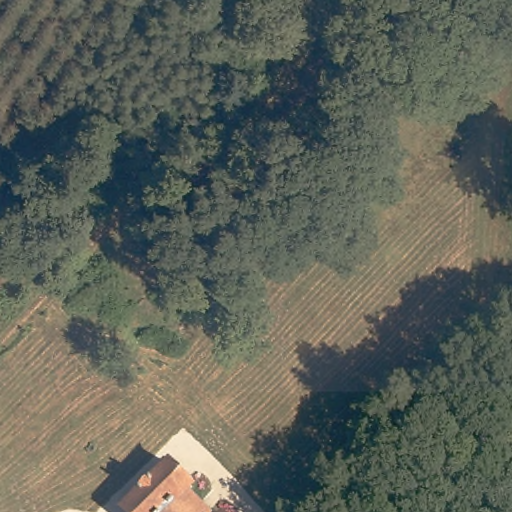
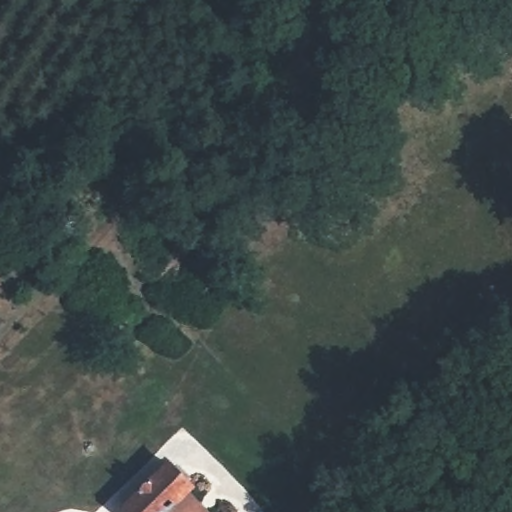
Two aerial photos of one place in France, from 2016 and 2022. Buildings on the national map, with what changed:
unchanged [(188,497),(202,512),(127,512),(125,511),(170,468),(193,491),(188,497)]

